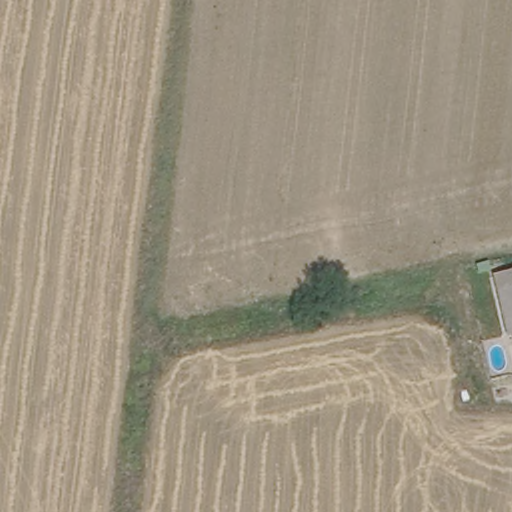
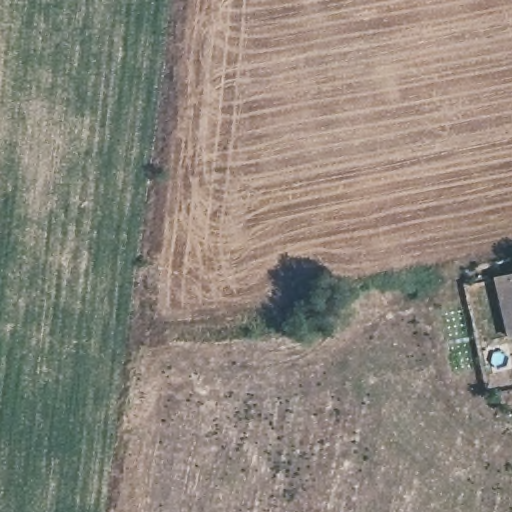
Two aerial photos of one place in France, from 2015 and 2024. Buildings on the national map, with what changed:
unchanged [(512,272),(512,332),(508,333),(496,276),(512,272)]

